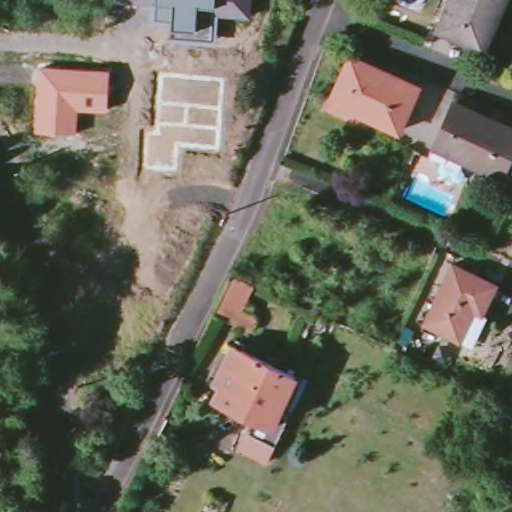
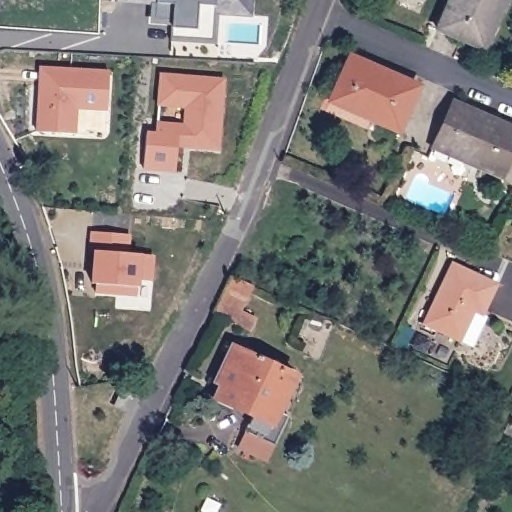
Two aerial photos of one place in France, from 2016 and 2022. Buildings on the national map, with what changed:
unchanged [(172,26),(173,17),(155,18),(157,2),(116,2),(116,0),(252,0),(250,17),(218,15),(216,40),(171,38),(172,26)]
unchanged [(483,48),(438,28),(450,0),(504,0),(483,48)]
unchanged [(418,86),(399,131),(330,101),(351,55),(418,86)]
unchanged [(107,110),(78,110),(77,133),(35,132),(40,66),(110,69),(107,110)]
unchanged [(217,148),(177,145),(175,170),(143,167),(146,129),(155,130),(160,73),(222,78),(217,148)]
unchanged [(512,128),(512,154),(502,177),(433,147),(454,101),(512,128)]
new [(92,250),(91,232),(130,234),(132,254),(140,255),(153,255),(152,281),(138,282),(137,285),(135,285),(135,294),(95,292),(96,281),(89,282),(92,250)]
unchanged [(453,263),(497,284),(482,314),(475,310),(474,312),(437,296),(453,263)]
unchanged [(258,284),(245,311),(261,318),(255,329),(218,312),(237,275),(258,284)]
unchanged [(460,340),(425,323),(437,296),(474,312),(460,340)]
unchanged [(220,385),(215,382),(232,345),(296,375),(272,425),(234,407),(215,398),(220,385)]
unchanged [(123,389),(133,394),(126,409),(115,404),(123,389)]
unchanged [(510,429),(512,426),(512,430),(510,429)]

